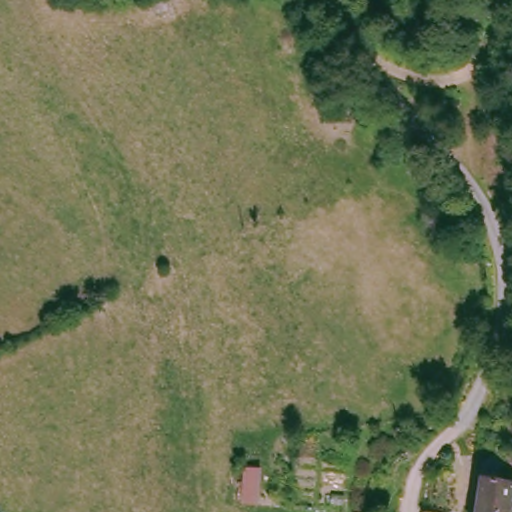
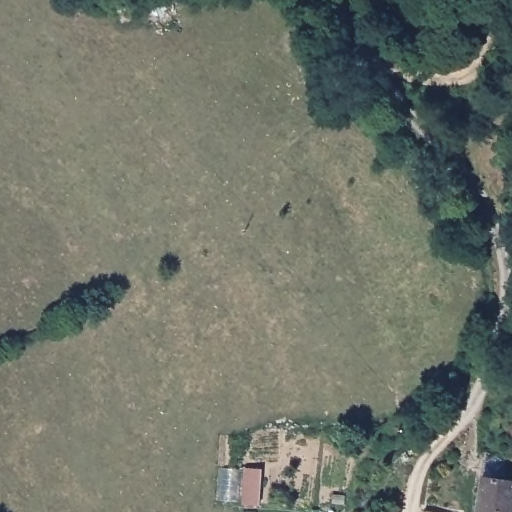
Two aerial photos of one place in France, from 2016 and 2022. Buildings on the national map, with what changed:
unchanged [(512,511),(512,512),(478,512),(485,477),(493,480),(494,480),(512,484),(512,511)]
unchanged [(457,509),(457,512),(420,512),(421,505),(457,509)]

